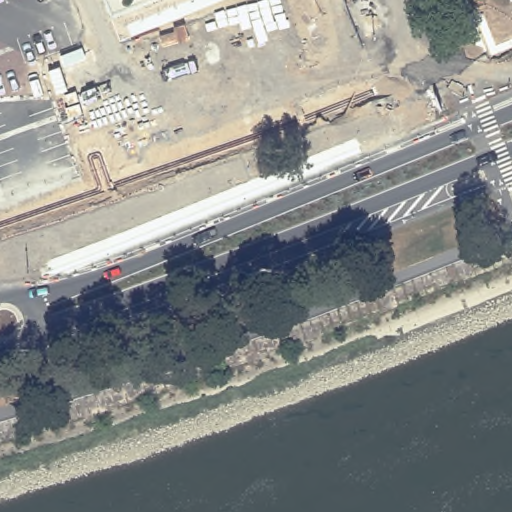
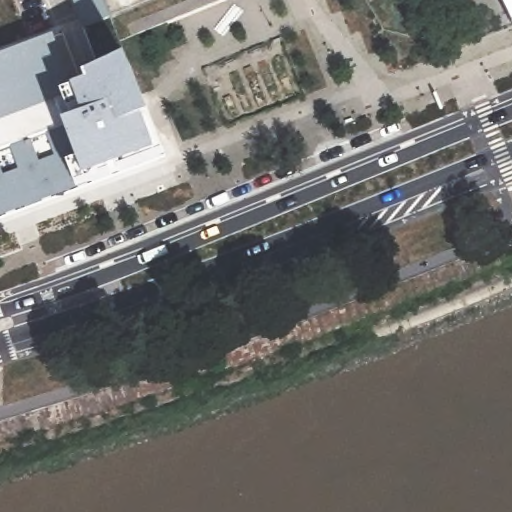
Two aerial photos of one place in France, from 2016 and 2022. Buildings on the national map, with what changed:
new [(512,0),(512,26),(500,0),(512,0)]
new [(83,74),(126,53),(131,54),(164,126),(155,130),(165,161),(79,192),(0,221),(0,56),(54,37),(83,74)]

